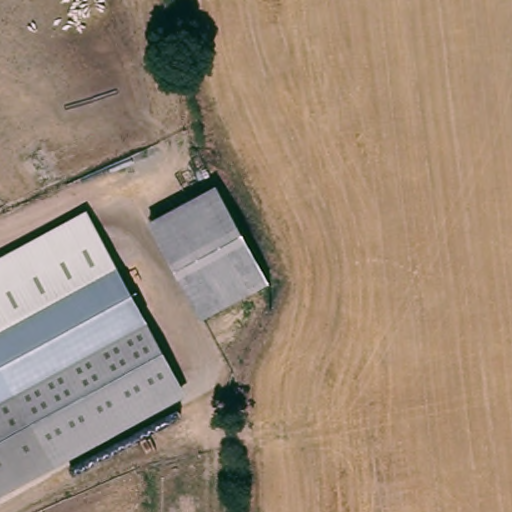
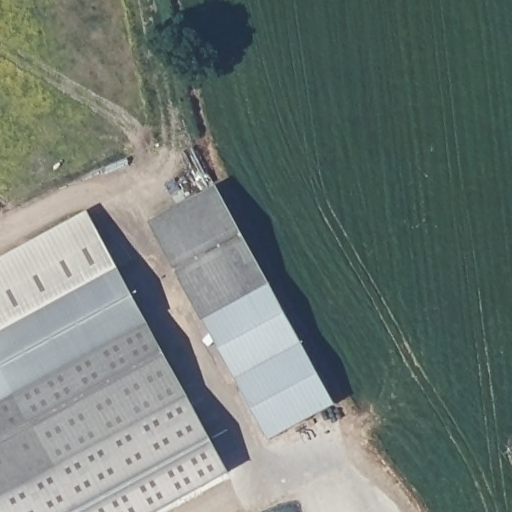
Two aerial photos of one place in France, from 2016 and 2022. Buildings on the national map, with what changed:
new [(217,186),(335,404),(268,441),(150,222),(217,186)]
unchanged [(81,216),(174,385),(0,480),(0,260),(81,216)]
unchanged [(181,398),(0,497),(0,480),(174,385),(181,398)]
new [(186,395),(230,472),(156,512),(0,512),(0,497),(181,398),(186,395)]

